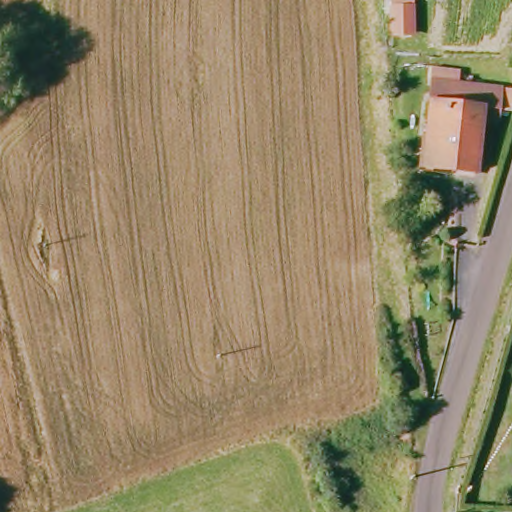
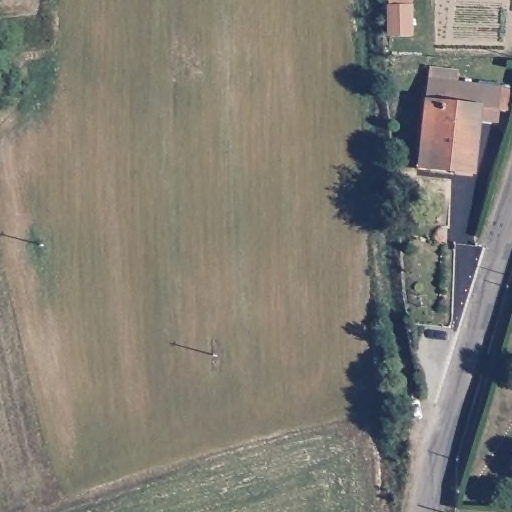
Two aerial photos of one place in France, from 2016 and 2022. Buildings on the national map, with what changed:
unchanged [(412,11),(413,36),(393,36),(393,11),(412,11)]
unchanged [(420,171),(427,71),(453,75),(451,87),(493,92),(492,122),(475,121),(471,175),(420,171)]

